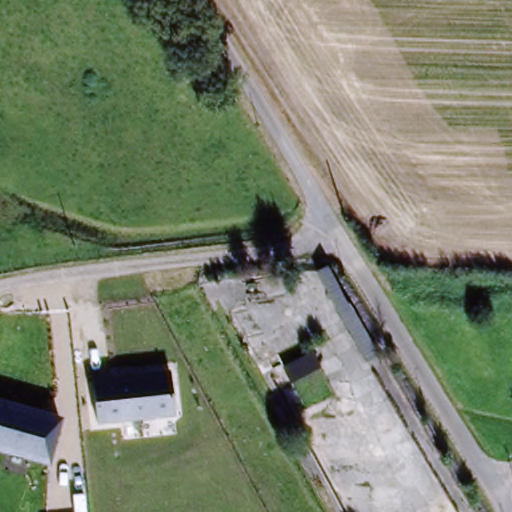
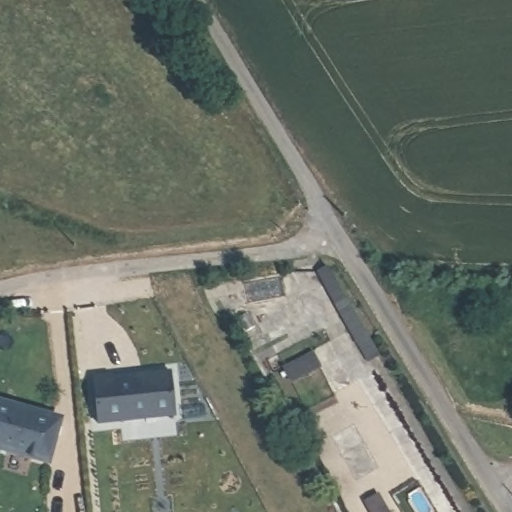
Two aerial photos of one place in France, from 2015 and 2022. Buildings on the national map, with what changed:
unchanged [(176,415),(100,425),(96,379),(173,370),(176,415)]
unchanged [(51,463),(0,450),(0,401),(63,417),(51,463)]

